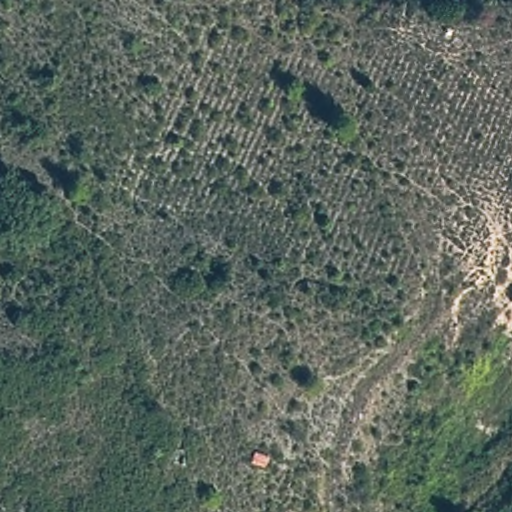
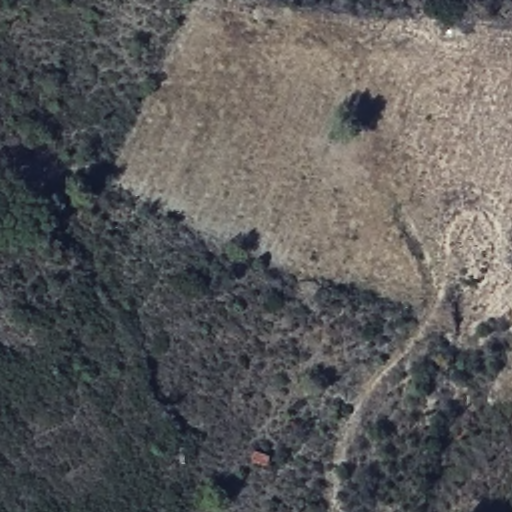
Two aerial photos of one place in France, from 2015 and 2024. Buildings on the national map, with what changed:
unchanged [(255,445),(274,450),(269,470),(252,464),(255,445)]

